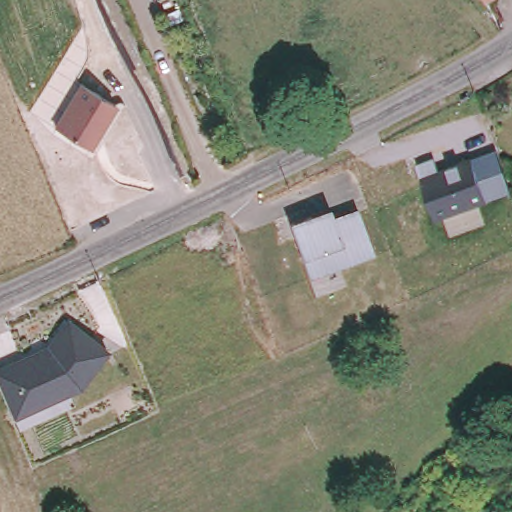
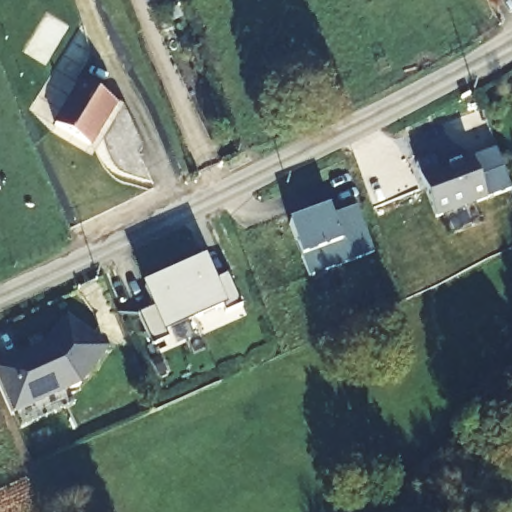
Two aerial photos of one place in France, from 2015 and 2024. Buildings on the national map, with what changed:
unchanged [(489,2),(492,0),(507,0),(512,9),(512,23),(502,28),(489,2)]
unchanged [(116,104),(92,148),(56,126),(80,84),(116,104)]
unchanged [(435,156),(440,168),(473,157),(498,148),(512,186),(512,188),(435,217),(416,163),(435,156)]
unchanged [(331,209),(333,215),(358,208),(372,252),(311,274),(305,258),(302,259),(289,223),(331,209)]
new [(204,263),(212,283),(227,276),(242,308),(226,315),(224,311),(194,323),(174,275),(204,263)]
new [(153,307),(145,287),(174,275),(194,323),(165,335),(167,339),(150,346),(137,314),(153,307)]
unchanged [(81,386),(70,391),(73,397),(69,399),(71,403),(17,426),(0,387),(0,359),(45,337),(63,312),(110,350),(81,386)]

